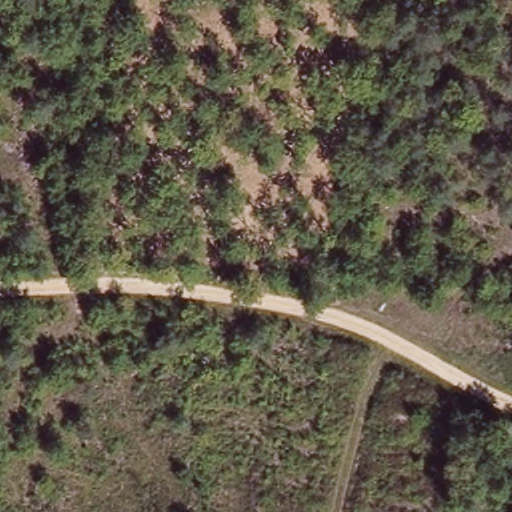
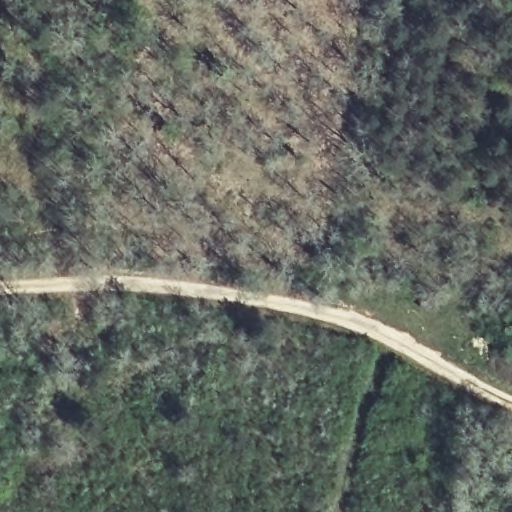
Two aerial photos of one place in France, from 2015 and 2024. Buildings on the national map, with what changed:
unchanged [(419,312),(414,331),(394,329),(399,307),(419,312)]

